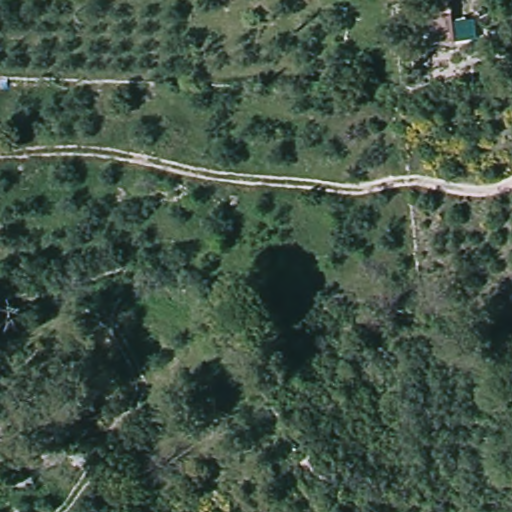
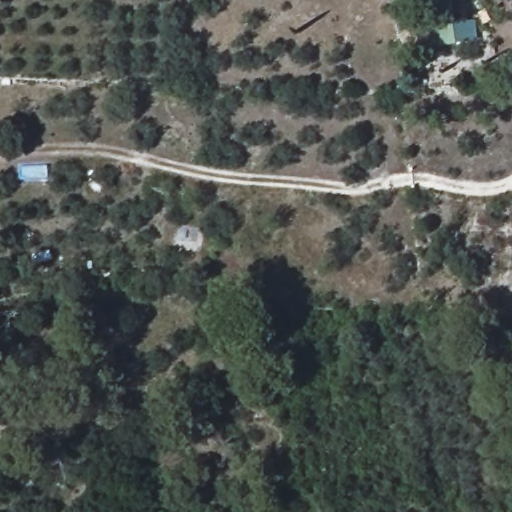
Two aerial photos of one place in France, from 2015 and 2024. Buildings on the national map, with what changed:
unchanged [(427,0),(451,0),(453,42),(430,43),(427,0)]

